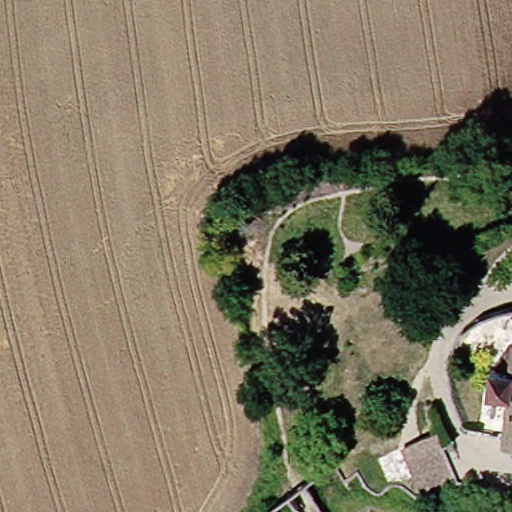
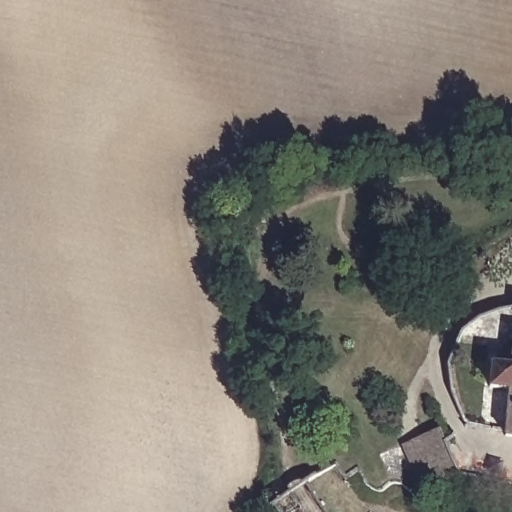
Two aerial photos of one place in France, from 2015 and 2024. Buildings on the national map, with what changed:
unchanged [(458,482),(427,496),(408,450),(439,435),(458,482)]

